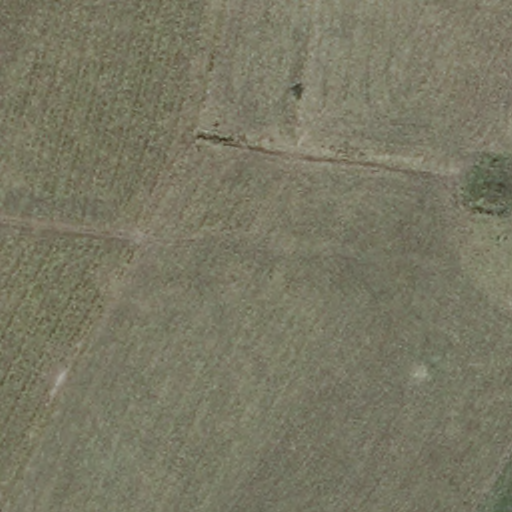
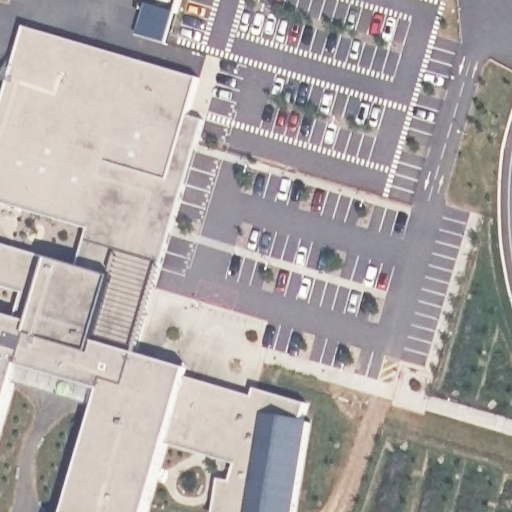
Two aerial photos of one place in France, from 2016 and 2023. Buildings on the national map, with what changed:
new [(26,30),(211,87),(137,350),(311,398),(296,512),(217,512),(226,473),(237,476),(239,461),(171,442),(152,512),(65,512),(96,406),(18,385),(0,450),(0,99),(4,100),(26,30)]

